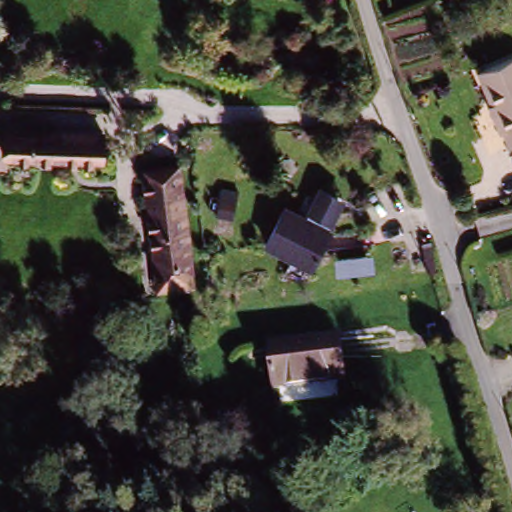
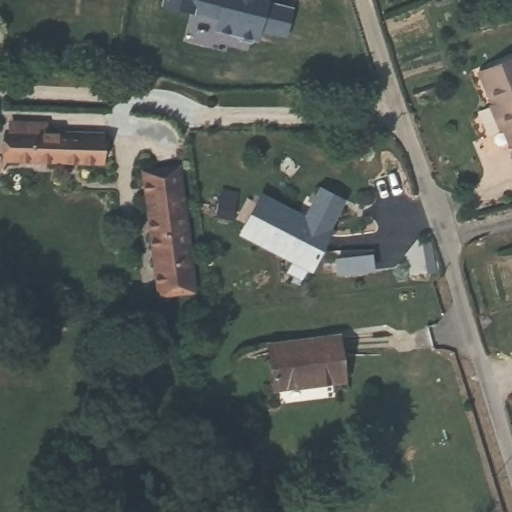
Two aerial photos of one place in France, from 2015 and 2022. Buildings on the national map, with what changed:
new [(194,12),(197,0),(269,0),(267,5),(294,12),(287,37),(261,30),(258,41),(255,40),(252,42),(242,40),(240,36),(217,30),(220,19),(194,12)]
unchanged [(487,99),(476,64),(512,52),(512,142),(505,144),(503,137),(495,140),(490,129),(481,101),(487,99)]
unchanged [(50,126),(48,135),(105,139),(103,169),(10,162),(12,132),(16,132),(17,124),(50,126)]
unchanged [(183,162),(197,287),(155,292),(140,167),(183,162)]
unchanged [(282,202),(305,212),(317,184),(348,199),(317,268),(264,244),(282,202)]
unchanged [(340,333),(347,381),(275,388),(270,341),(340,333)]

